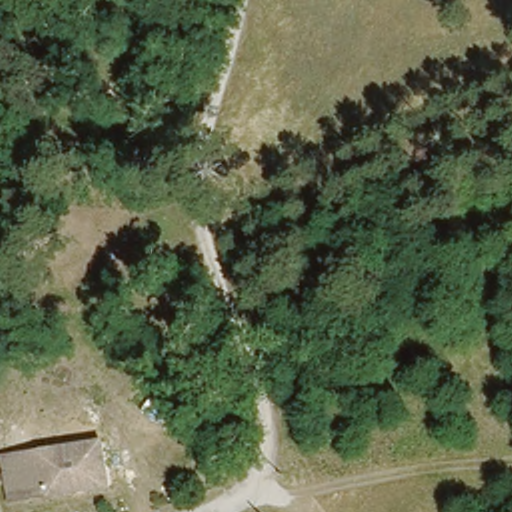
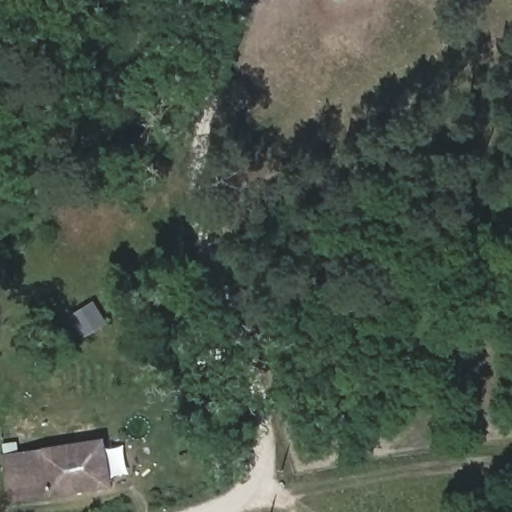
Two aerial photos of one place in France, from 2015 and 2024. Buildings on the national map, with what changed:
unchanged [(101,326),(82,340),(71,324),(90,310),(101,326)]
unchanged [(11,492),(10,490),(5,450),(69,438),(98,433),(107,478),(51,486),(11,492)]
unchanged [(234,490),(219,493),(214,469),(229,466),(234,490)]

